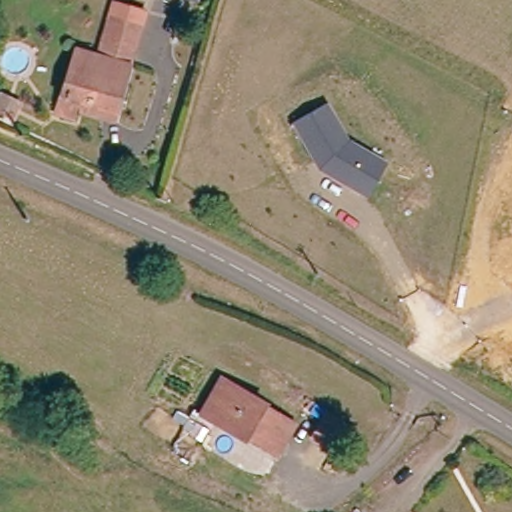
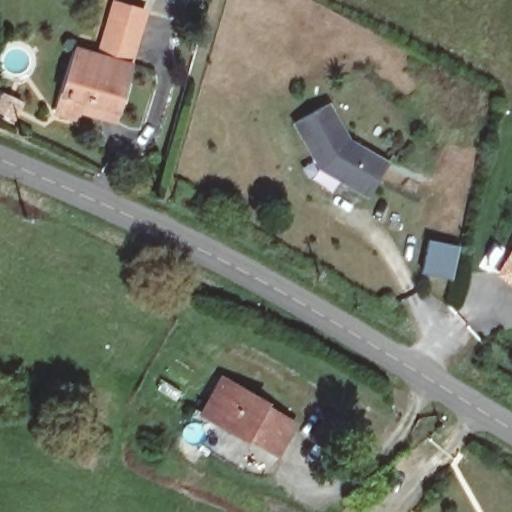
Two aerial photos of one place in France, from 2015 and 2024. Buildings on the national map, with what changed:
unchanged [(102,65),(114,25),(116,19),(144,27),(117,117),(79,105),(73,124),(57,120),(76,56),(102,65)]
unchanged [(0,101),(0,88),(1,85),(16,91),(11,105),(0,101)]
unchanged [(350,139),(388,162),(366,197),(318,167),(293,125),(329,102),(350,139)]
new [(459,247),(452,280),(422,274),(428,240),(459,247)]
new [(495,276),(512,249),(512,287),(495,276)]
unchanged [(271,450),(267,448),(249,440),(247,443),(202,420),(221,382),(266,405),(265,409),(295,424),(290,435),(287,440),(280,455),(271,450)]

